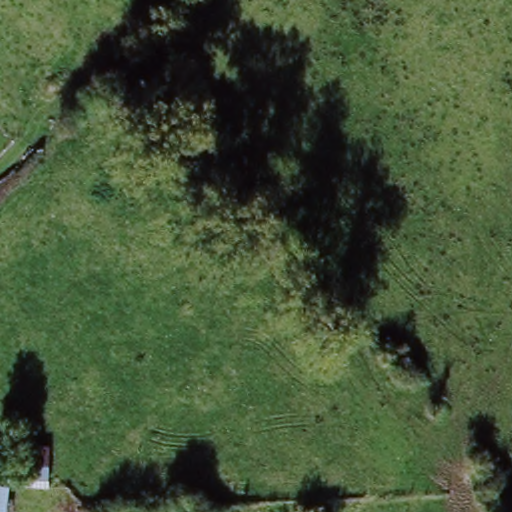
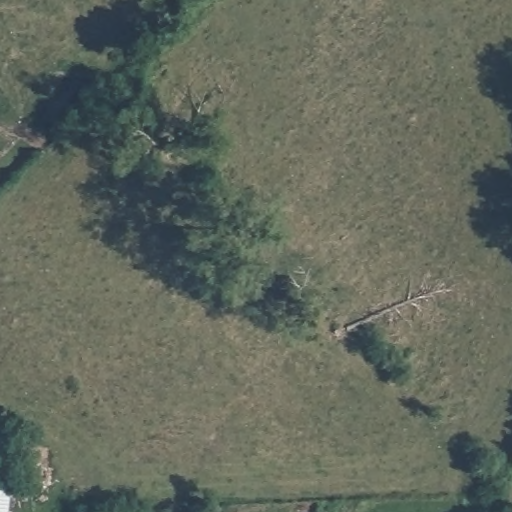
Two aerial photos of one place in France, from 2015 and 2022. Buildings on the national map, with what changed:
unchanged [(13,464),(12,446),(52,449),(50,467),(49,489),(10,484),(7,512),(0,512),(0,470),(13,464)]

